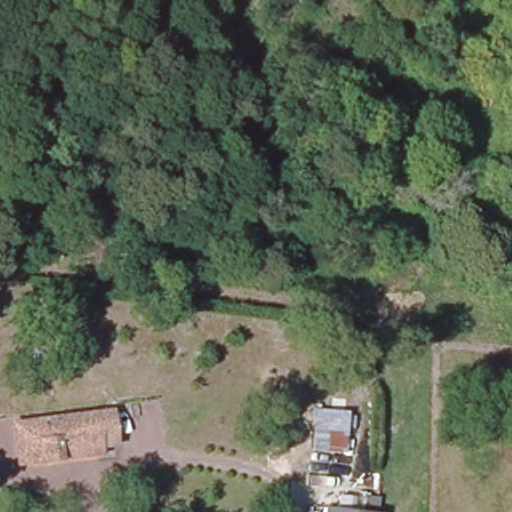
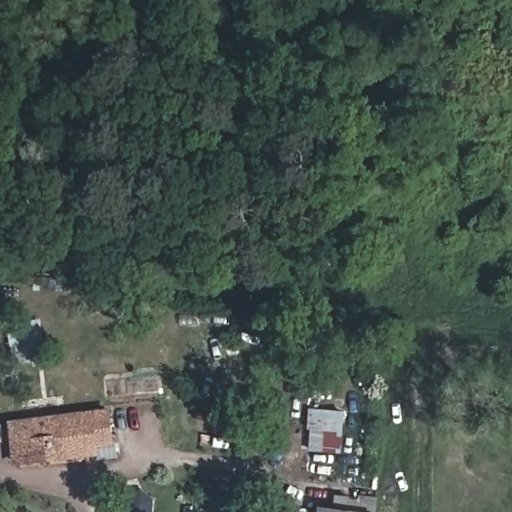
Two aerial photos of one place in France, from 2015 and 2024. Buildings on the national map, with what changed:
unchanged [(344,454),(309,452),(310,410),(346,412),(344,454)]
unchanged [(11,425),(18,424),(109,415),(113,445),(98,446),(98,457),(25,464),(15,465),(11,425)]
unchanged [(323,512),(324,509),(357,512),(323,512)]

